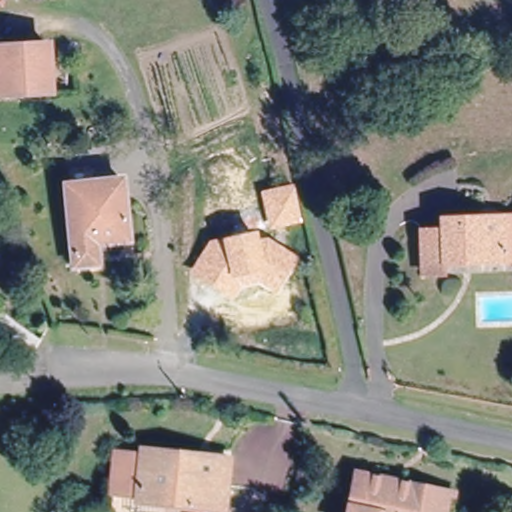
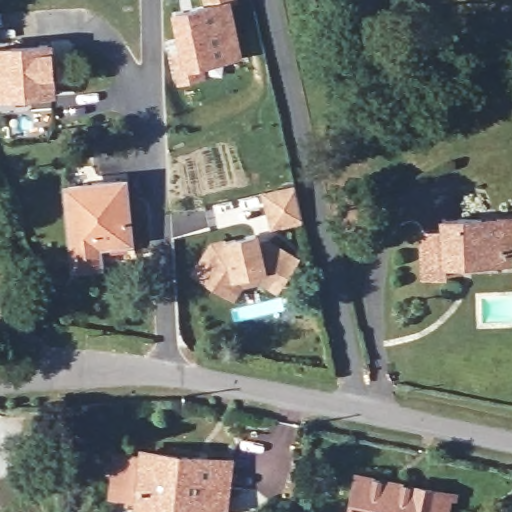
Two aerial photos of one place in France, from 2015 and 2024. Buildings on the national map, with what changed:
new [(206,81),(177,86),(171,52),(179,50),(170,8),(205,1),(204,0),(239,0),(239,3),(232,5),(242,56),(204,64),(206,81)]
unchanged [(54,89),(0,92),(0,44),(50,41),(54,89)]
unchanged [(125,238),(89,241),(91,262),(71,264),(62,182),(119,177),(125,238)]
unchanged [(294,184),(302,223),(268,230),(260,192),(294,184)]
unchanged [(445,269),(423,269),(422,229),(443,228),(443,218),(458,218),(499,216),(512,215),(512,256),(500,257),(445,259),(445,269)]
unchanged [(222,248),(220,239),(257,232),(260,239),(270,237),(298,258),(276,294),(261,283),(242,287),(234,302),(190,272),(211,240),(222,248)]
unchanged [(136,503),(136,497),(110,495),(113,454),(140,456),(141,451),(229,461),(224,511),(136,503)]
unchanged [(351,464),(441,483),(434,512),(341,512),(351,464)]

